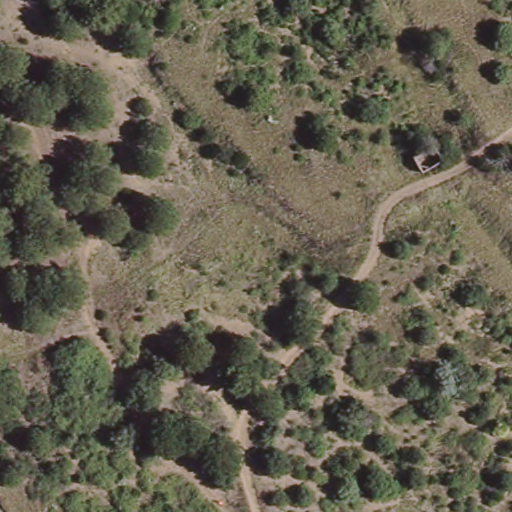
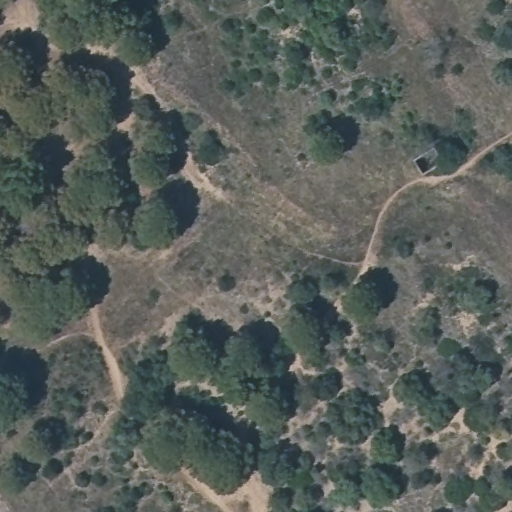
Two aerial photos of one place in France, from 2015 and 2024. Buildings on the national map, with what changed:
unchanged [(439,161),(419,172),(410,157),(430,145),(439,161)]
unchanged [(3,390),(0,384),(0,377),(14,371),(18,385),(3,390)]

